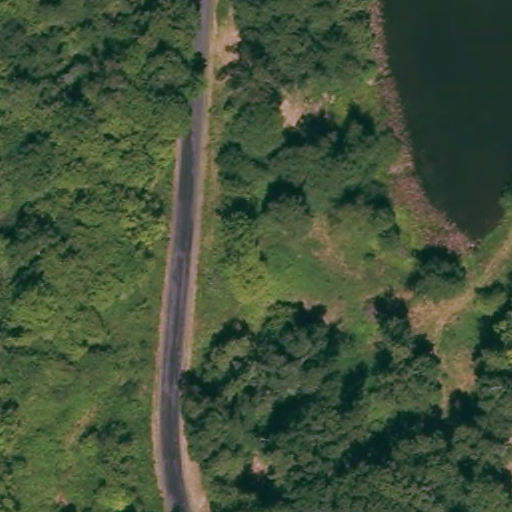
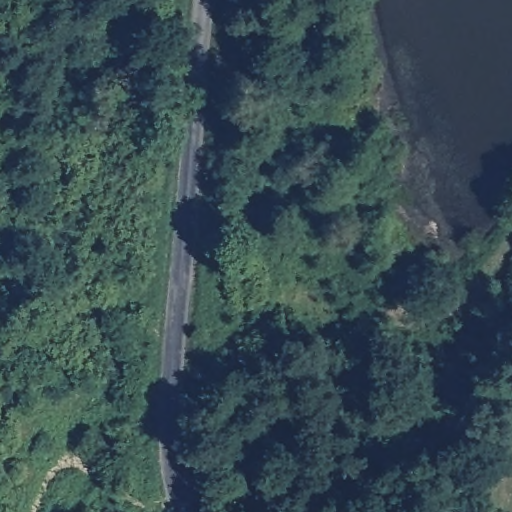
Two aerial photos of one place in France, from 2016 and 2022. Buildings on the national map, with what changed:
[]

